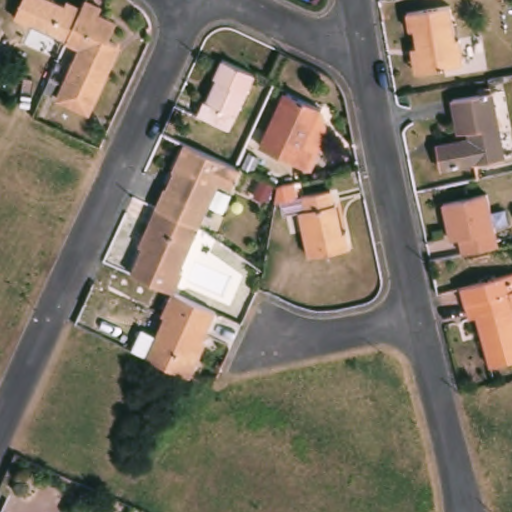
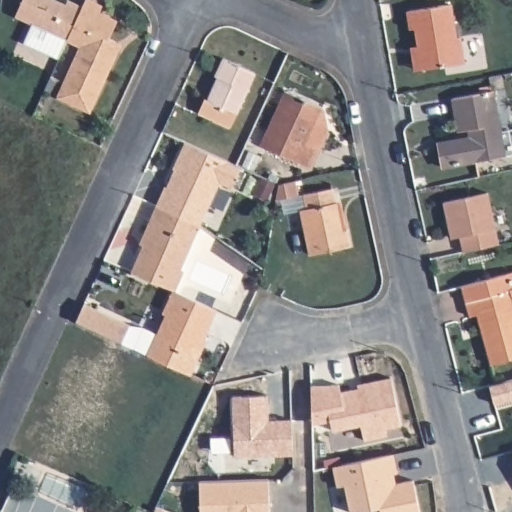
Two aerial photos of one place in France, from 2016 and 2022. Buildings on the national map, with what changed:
unchanged [(18,21),(28,0),(44,0),(68,12),(71,6),(87,13),(72,45),(71,46),(18,21)]
unchanged [(416,28),(411,29),(409,11),(452,4),(457,36),(461,36),(466,62),(422,70),(416,28)]
unchanged [(107,12),(104,19),(122,27),(114,44),(124,49),(92,116),(61,102),(84,51),(72,45),(87,13),(90,5),(107,12)]
unchanged [(197,121),(205,105),(207,106),(219,84),(216,83),(225,64),(257,78),(229,136),(197,121)]
unchanged [(322,108),(319,112),(324,114),(328,132),(319,152),(315,151),(311,161),(299,163),(263,146),(287,92),(322,108)]
unchanged [(476,169),(475,165),(440,172),(437,150),(471,143),(470,135),(459,137),(453,104),(490,97),(503,163),(476,169)]
unchanged [(231,190),(219,184),(199,227),(156,207),(165,188),(166,189),(175,171),(173,170),(185,144),(235,167),(241,169),(231,190)]
unchanged [(309,210),(306,197),(332,191),(335,205),(338,205),(343,231),(348,229),(352,247),(313,256),(303,211),(309,210)]
unchanged [(460,240),(452,242),(442,205),(487,194),(500,246),(464,255),(460,240)]
unchanged [(180,269),(183,270),(175,291),(173,290),(171,290),(130,273),(129,272),(143,243),(145,244),(153,225),(148,223),(156,207),(199,227),(180,269)]
unchanged [(479,317),(471,318),(464,288),(512,276),(512,360),(491,365),(479,317)]
unchanged [(119,291),(106,285),(110,277),(123,282),(119,291)]
unchanged [(191,356),(196,358),(188,375),(153,359),(147,357),(165,316),(162,315),(173,290),(175,291),(179,293),(190,298),(215,309),(201,338),(200,337),(191,356)]
new [(83,306),(129,327),(121,345),(75,324),(83,306)]
new [(338,385),(340,393),(358,389),(357,385),(391,379),(400,425),(384,429),(386,436),(363,441),(360,426),(332,431),(330,421),(311,425),(310,386),(338,385)]
new [(488,386),(512,380),(512,400),(494,405),(488,386)]
new [(292,455),(233,457),(232,397),(267,396),(268,421),(291,420),(292,455)]
new [(397,472),(393,473),(395,483),(413,480),(420,512),(381,512),(380,507),(355,512),(350,512),(344,485),(337,487),(332,467),(393,454),(397,472)]
new [(269,512),(200,512),(199,482),(268,480),(269,512)]

